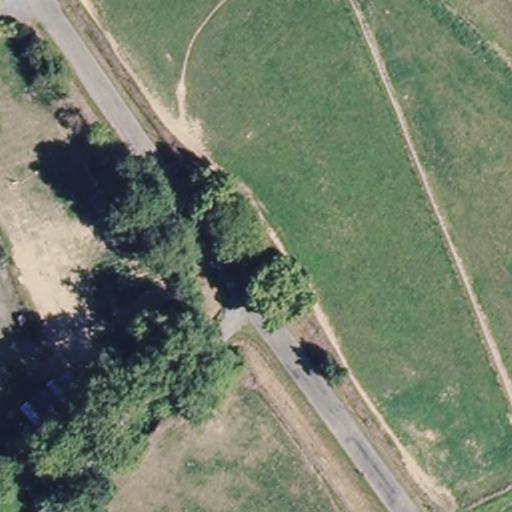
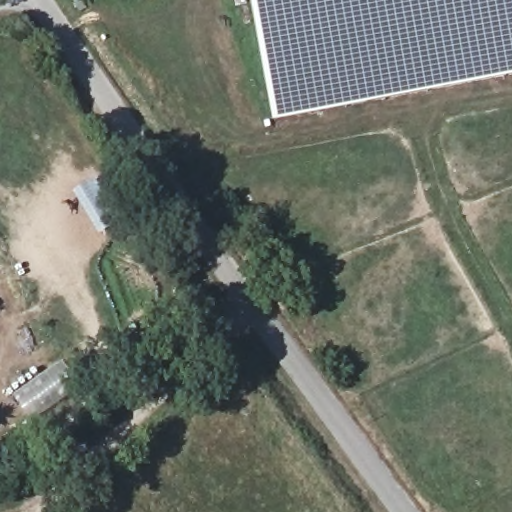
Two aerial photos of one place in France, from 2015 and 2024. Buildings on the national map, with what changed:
new [(280,129),(254,0),(512,0),(512,82),(280,129)]

